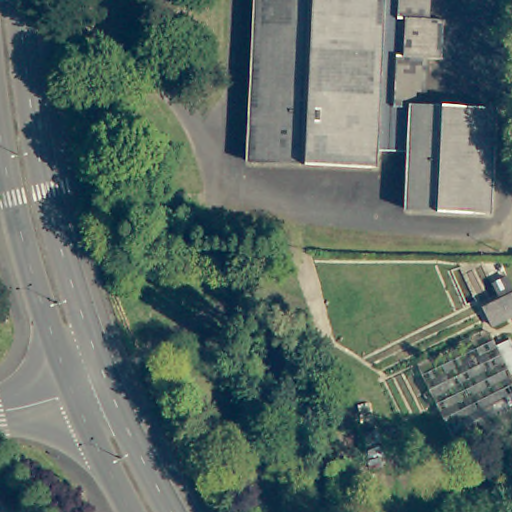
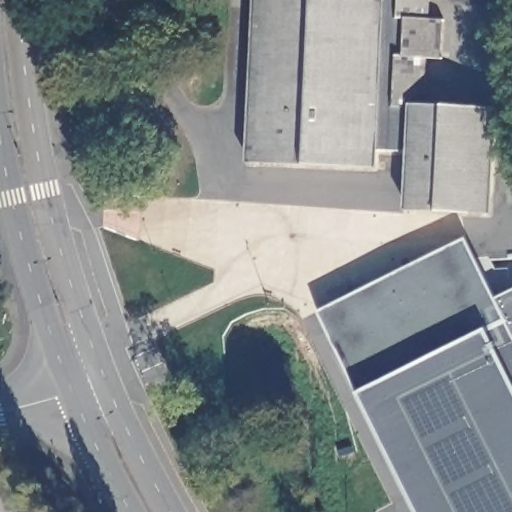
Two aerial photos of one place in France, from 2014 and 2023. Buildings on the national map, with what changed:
unchanged [(439,21),(437,60),(425,60),(422,108),(488,111),(486,150),(483,214),(407,210),(409,153),(370,151),(369,166),(292,162),(285,162),(248,160),(256,14),(257,0),(428,0),(426,20),(439,21)]
new [(512,290),(512,512),(419,512),(360,394),(319,312),(465,240),(495,298),(512,290)]
demolished [(487,305),(512,292),(512,315),(496,322),(487,305)]
demolished [(484,339),(493,335),(512,376),(512,431),(502,436),(499,425),(459,445),(420,367),(401,373),(385,341),(469,301),(484,339)]

